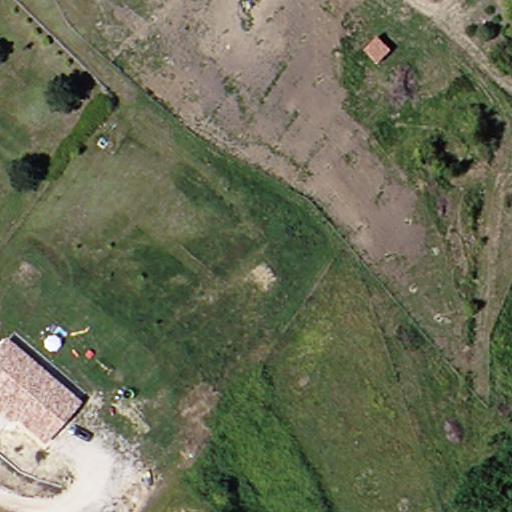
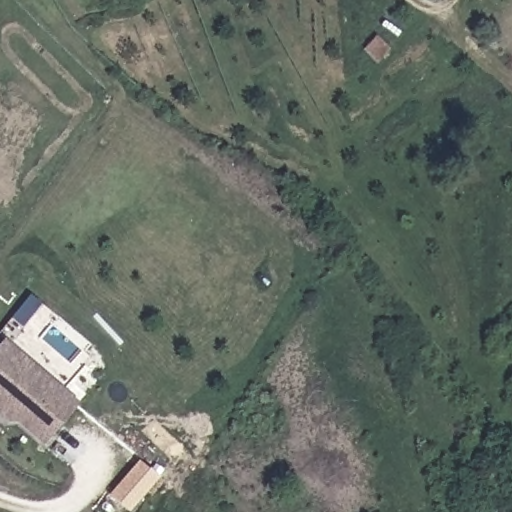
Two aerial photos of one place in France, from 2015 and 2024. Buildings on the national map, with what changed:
unchanged [(28,355),(64,386),(81,401),(48,439),(21,415),(14,416),(4,407),(0,404),(0,352),(11,340),(28,355)]
new [(143,460),(160,476),(130,510),(112,494),(143,460)]

